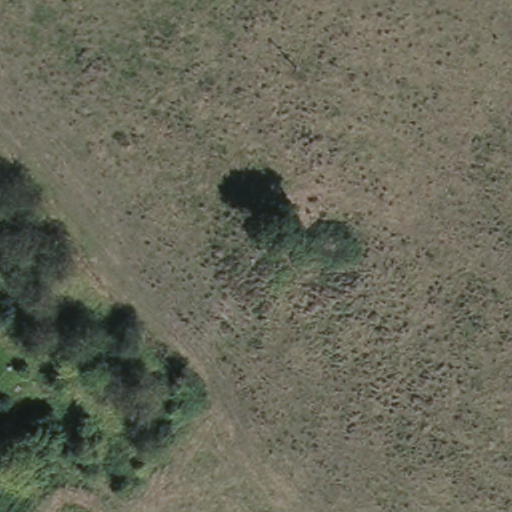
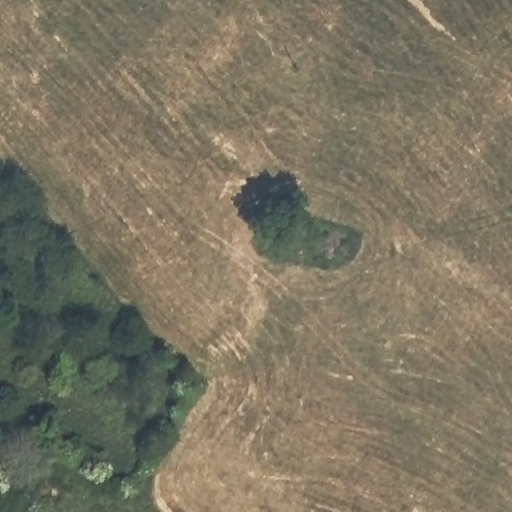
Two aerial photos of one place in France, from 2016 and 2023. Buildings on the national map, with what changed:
unchanged [(5,470),(0,475),(0,465),(5,470)]

